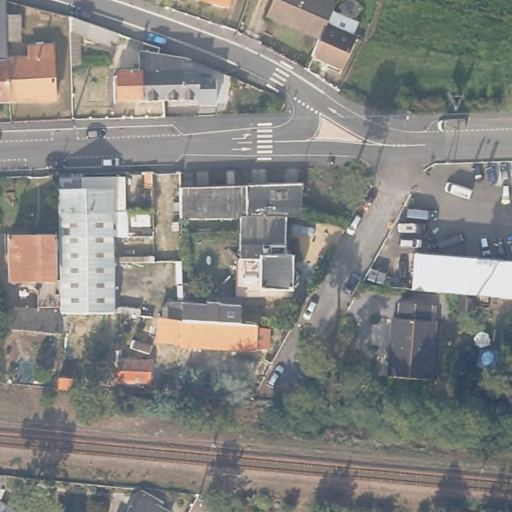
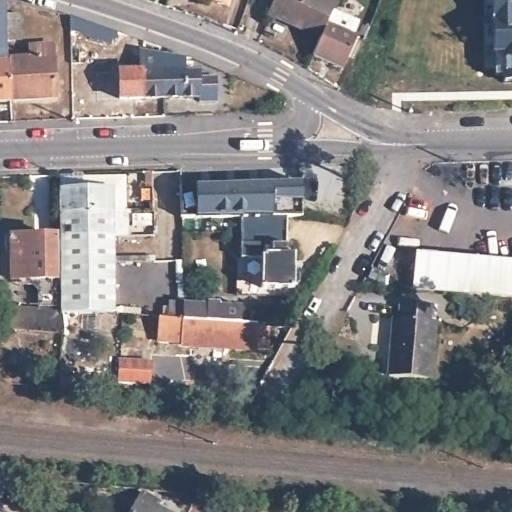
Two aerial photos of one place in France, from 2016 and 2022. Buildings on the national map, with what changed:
unchanged [(208,0),(228,0),(226,6),(208,0)]
unchanged [(285,0),(310,0),(341,13),(337,22),(332,34),(326,47),(294,34),(274,25),(276,19),(285,0)]
new [(503,76),(493,76),(492,52),(492,46),(484,46),(484,27),(492,27),(492,12),(483,12),(483,0),(512,0),(512,82),(503,82),(503,76)]
unchanged [(6,3),(10,61),(12,105),(0,105),(0,3),(6,3)]
unchanged [(71,15),(120,31),(118,38),(111,37),(111,43),(80,32),(81,62),(71,63),(70,15),(71,15)]
unchanged [(337,22),(363,32),(357,44),(360,46),(346,79),(318,66),(326,47),(332,34),(337,22)]
unchanged [(31,59),(30,50),(53,48),(57,102),(12,105),(10,61),(31,59)]
unchanged [(126,102),(125,76),(146,75),(146,54),(165,57),(169,101),(126,102)]
unchanged [(165,57),(190,62),(191,78),(204,77),(204,74),(217,77),(217,82),(221,82),(220,105),(204,105),(203,101),(169,101),(165,57)]
unchanged [(61,188),(61,178),(131,177),(130,211),(114,212),(61,212),(61,188)]
unchanged [(242,253),(242,236),(242,223),(181,224),(180,194),(180,191),(301,187),(301,221),(287,221),(287,251),(242,253)]
unchanged [(114,212),(114,310),(64,310),(64,308),(62,252),(61,234),(61,212),(114,212)]
unchanged [(62,252),(56,252),(56,278),(12,278),(11,265),(6,265),(5,257),(11,257),(10,236),(61,234),(62,252)]
unchanged [(287,260),(295,260),(295,292),(261,292),(261,291),(254,291),(254,262),(241,262),(242,253),(287,251),(287,260)]
unchanged [(435,296),(410,293),(413,258),(512,264),(512,302),(460,297),(435,296)]
unchanged [(427,307),(426,322),(433,323),(429,380),(385,377),(389,319),(395,319),(396,305),(427,307)]
unchanged [(64,308),(64,310),(65,332),(0,326),(0,307),(52,308),(64,308)]
unchanged [(256,332),(255,357),(182,353),(181,352),(160,351),(161,342),(161,332),(161,326),(166,327),(167,308),(184,310),(243,314),(242,332),(255,332),(256,332)]
unchanged [(57,385),(60,367),(60,359),(60,358),(74,361),(73,369),(71,387),(57,385)]
unchanged [(150,361),(150,381),(120,379),(120,358),(150,361)]
unchanged [(21,476),(15,489),(0,483),(0,473),(21,476)]
unchanged [(153,496),(151,501),(171,512),(130,512),(142,491),(153,496)]
unchanged [(19,512),(0,512),(0,502),(19,512)]

